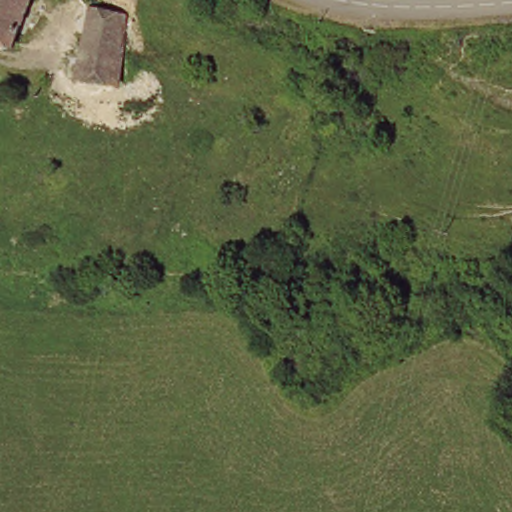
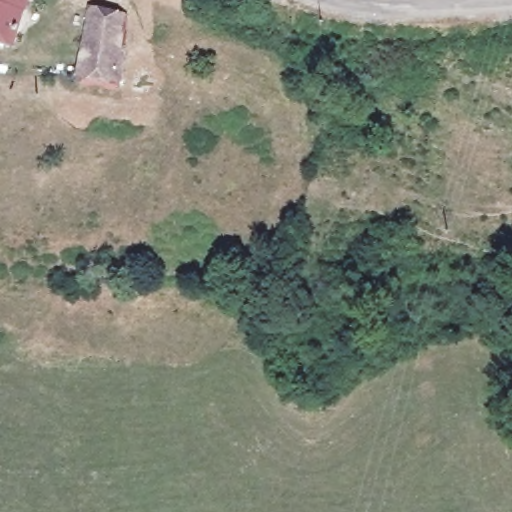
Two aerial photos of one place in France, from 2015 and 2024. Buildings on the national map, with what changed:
unchanged [(0,54),(0,0),(29,0),(10,59),(0,54)]
unchanged [(94,5),(128,15),(111,88),(74,77),(94,5)]

